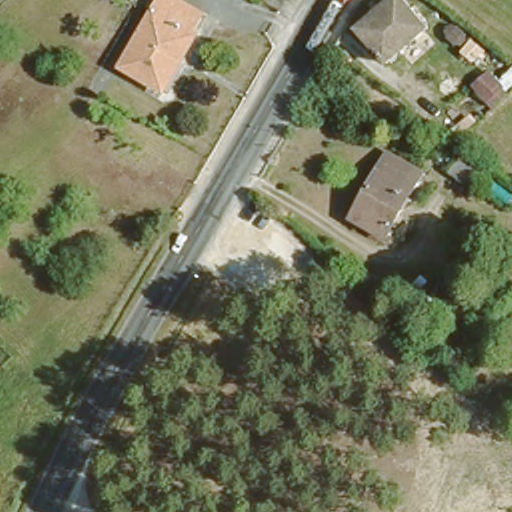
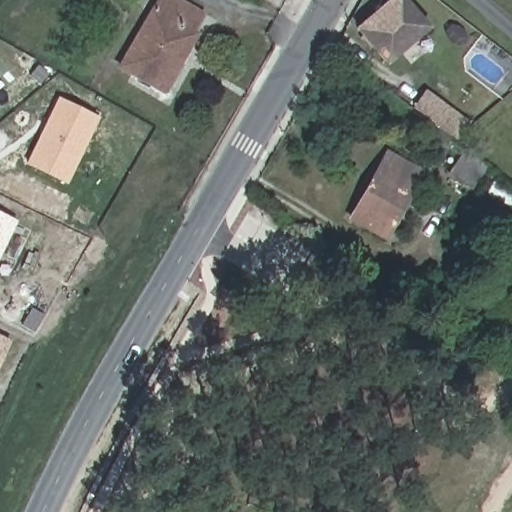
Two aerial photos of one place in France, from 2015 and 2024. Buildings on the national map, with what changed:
unchanged [(195,10),(184,28),(190,32),(179,51),(173,48),(152,85),(116,63),(151,0),(179,0),(195,10)]
unchanged [(406,54),(399,47),(383,60),(354,25),(384,0),(410,0),(429,22),(415,33),(421,41),(406,54)]
demolished [(492,76),(496,74),(498,76),(512,64),(512,88),(488,107),(470,83),(487,70),(492,76)]
new [(430,94),(468,121),(454,136),(417,109),(430,94)]
new [(100,117),(67,185),(25,164),(59,97),(100,117)]
unchanged [(471,184),(447,168),(464,147),(487,162),(471,184)]
unchanged [(421,167),(384,234),(351,214),(388,148),(421,167)]
new [(0,258),(0,213),(18,222),(0,258)]
new [(0,367),(0,336),(12,342),(0,367)]

